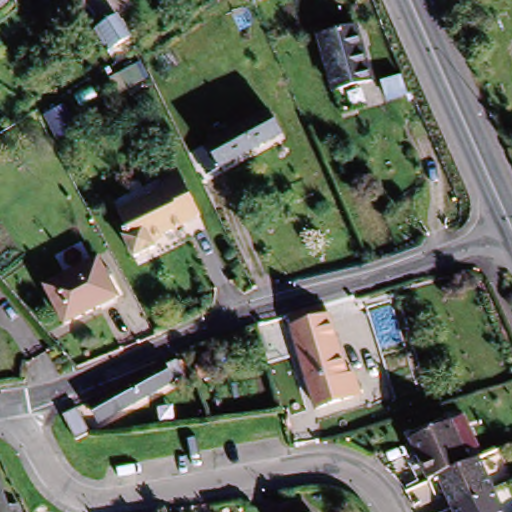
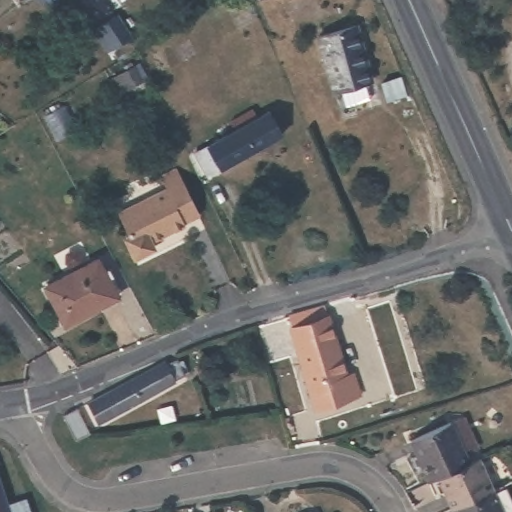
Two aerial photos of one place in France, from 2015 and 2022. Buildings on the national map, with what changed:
unchanged [(355,31),(374,85),(338,98),(319,44),(355,31)]
unchanged [(133,67),(141,81),(125,89),(118,74),(133,67)]
unchanged [(399,82),(406,97),(401,99),(399,94),(389,98),(384,87),(399,82)]
unchanged [(56,112),(68,135),(56,141),(44,118),(56,112)]
unchanged [(261,121),(274,145),(213,178),(199,154),(261,121)]
unchanged [(164,186),(159,175),(176,167),(198,212),(184,219),(185,221),(149,238),(153,245),(133,255),(122,233),(125,232),(115,210),(164,186)]
unchanged [(95,261),(114,297),(61,324),(43,287),(95,261)]
unchanged [(316,318),(336,388),(344,386),(351,410),(309,421),(281,327),(316,318)]
unchanged [(97,408),(119,397),(173,369),(183,386),(128,414),(105,426),(97,408)]
unchanged [(73,443),(63,417),(77,413),(86,439),(73,443)]
unchanged [(436,479),(427,483),(411,440),(451,422),(470,465),(436,479)]
unchanged [(451,511),(436,479),(470,465),(479,461),(494,493),(451,511)]
unchanged [(494,493),(502,512),(451,512),(451,511),(494,493)]
unchanged [(11,503),(15,512),(0,512),(0,502),(1,506),(11,503)]

